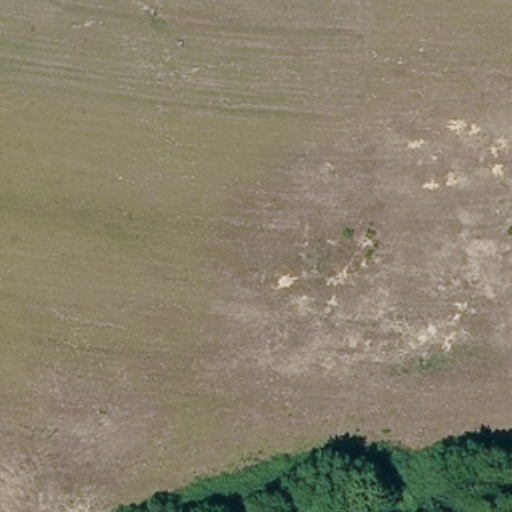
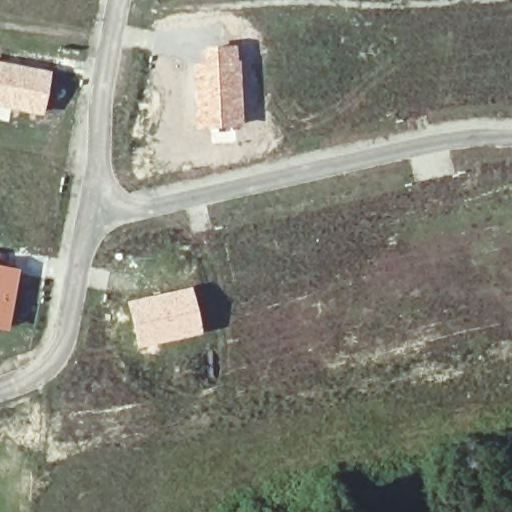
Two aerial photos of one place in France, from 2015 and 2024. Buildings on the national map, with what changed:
new [(195,129),(191,64),(205,64),(204,47),(235,46),(236,62),(239,62),(242,127),(195,129)]
new [(0,107),(0,63),(51,72),(43,115),(0,107)]
new [(0,330),(0,266),(20,270),(7,332),(0,330)]
new [(137,349),(126,302),(190,287),(201,334),(137,349)]

